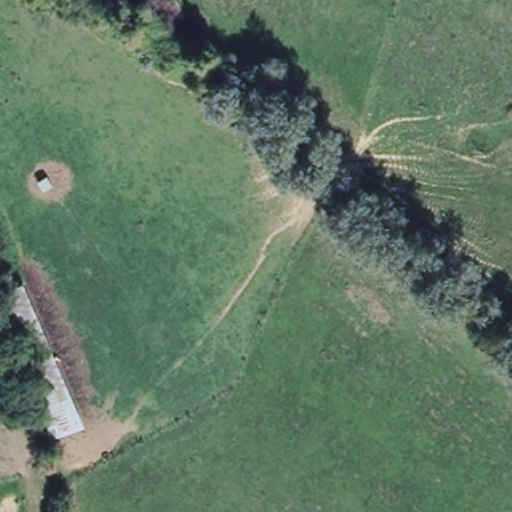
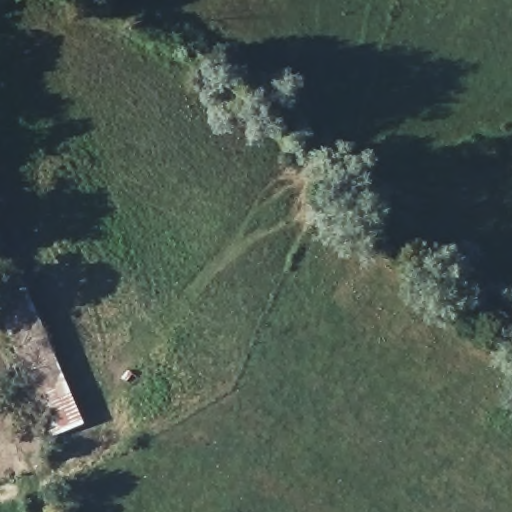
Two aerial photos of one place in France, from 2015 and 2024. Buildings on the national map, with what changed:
unchanged [(51,436),(0,324),(0,280),(24,271),(88,424),(51,436)]

